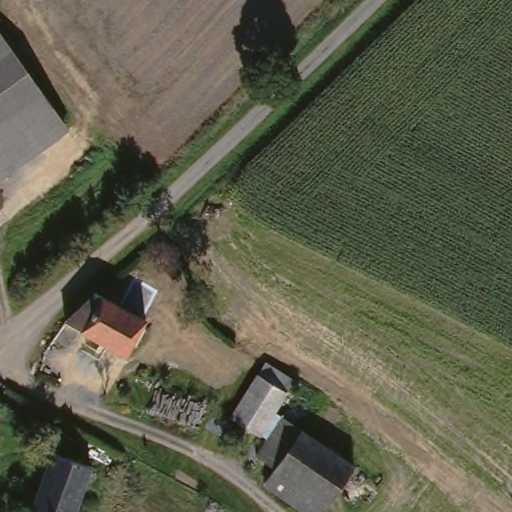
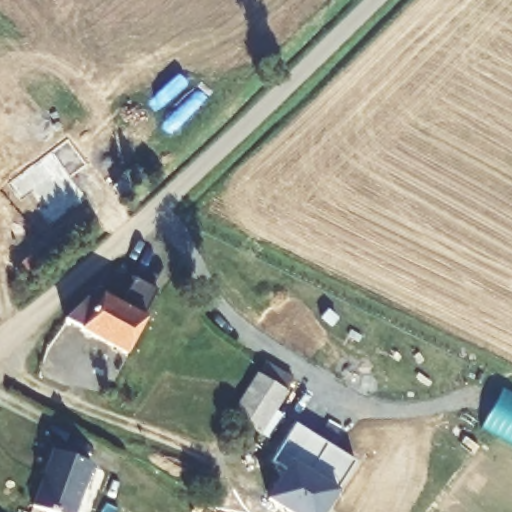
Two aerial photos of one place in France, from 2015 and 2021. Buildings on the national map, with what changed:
demolished [(12,55),(25,74),(65,130),(0,178),(0,64),(12,55)]
unchanged [(65,321),(96,292),(146,320),(126,355),(65,321)]
unchanged [(227,416),(261,363),(288,380),(255,433),(227,416)]
unchanged [(299,512),(260,484),(297,430),(348,466),(316,512),(299,512)]
unchanged [(53,453),(91,467),(75,512),(45,512),(32,507),(53,453)]

